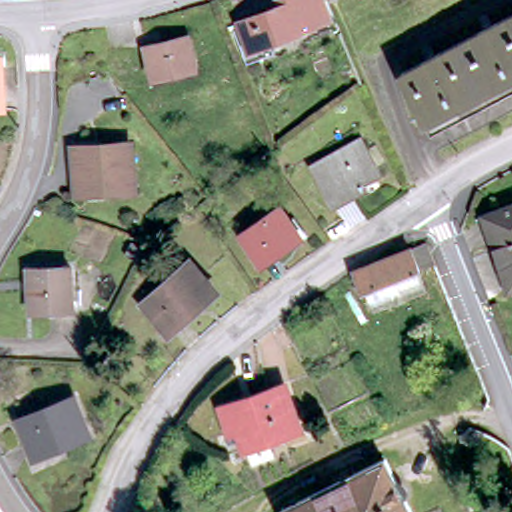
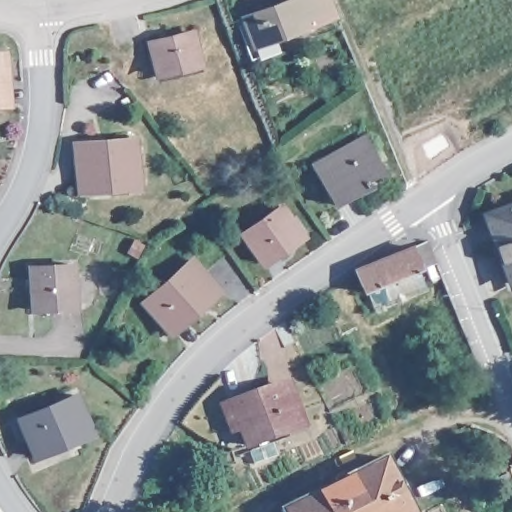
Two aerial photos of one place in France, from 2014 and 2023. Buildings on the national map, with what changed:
unchanged [(315,32),(258,51),(250,24),(305,6),(315,32)]
demolished [(423,141),(412,117),(417,114),(397,76),(512,16),(512,96),(423,141)]
unchanged [(212,66),(167,79),(159,48),(203,36),(212,66)]
unchanged [(61,76),(59,56),(92,50),(107,68),(67,84),(61,76)]
unchanged [(0,97),(2,112),(0,112),(0,61),(5,61),(8,96),(0,97)]
unchanged [(386,180),(368,190),(372,196),(340,215),(315,171),(364,142),(386,180)]
unchanged [(140,194),(112,197),(111,193),(84,194),(80,156),(135,150),(140,194)]
unchanged [(487,217),(512,207),(512,280),(487,217)]
unchanged [(306,242),(267,269),(246,239),(284,212),(306,242)]
unchanged [(363,291),(360,293),(352,272),(410,249),(420,245),(430,265),(418,270),(415,271),(363,291)]
unchanged [(224,293),(182,335),(154,307),(197,265),(224,293)]
unchanged [(78,310),(37,313),(35,273),(75,270),(78,310)]
unchanged [(415,271),(425,294),(373,315),(363,291),(415,271)]
unchanged [(256,464),(251,446),(245,425),(234,429),(227,406),(292,386),(299,409),(302,408),(308,427),(275,439),(280,457),(256,464)]
unchanged [(95,440),(42,463),(25,427),(80,403),(95,440)]
unchanged [(294,512),(392,464),(416,512),(294,512)]

